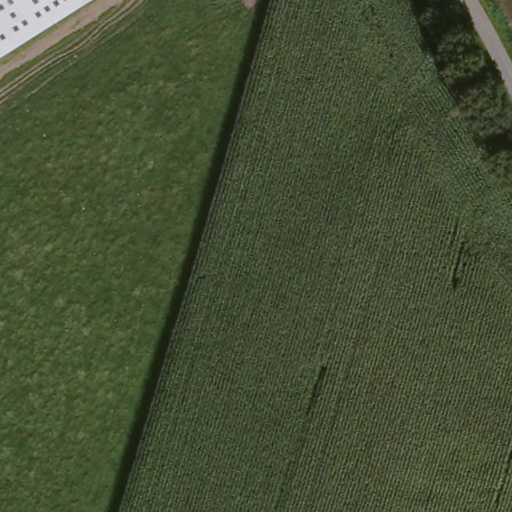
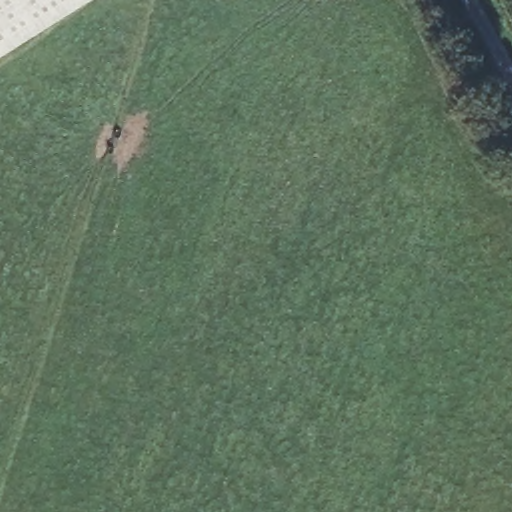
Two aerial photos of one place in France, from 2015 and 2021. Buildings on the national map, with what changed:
unchanged [(0,54),(0,0),(86,0),(0,54)]

